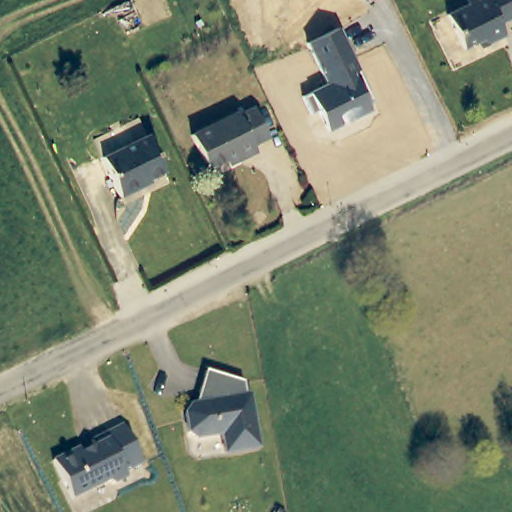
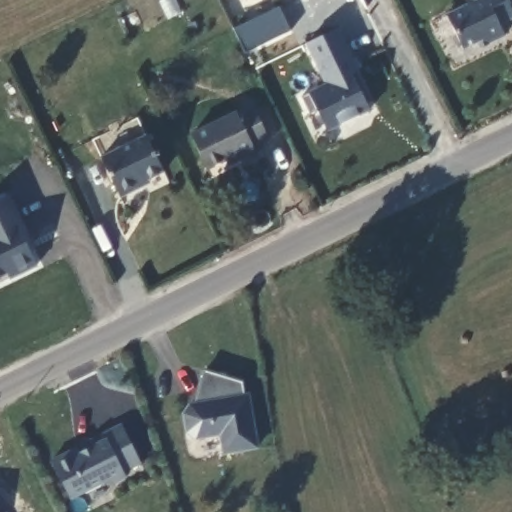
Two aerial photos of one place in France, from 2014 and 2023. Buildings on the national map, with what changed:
unchanged [(465,50),(450,19),(476,8),(473,1),(476,0),(512,0),(512,23),(505,26),(509,39),(491,46),(482,50),(480,44),(465,50)]
unchanged [(322,130),(303,94),(325,84),(306,45),(337,28),(373,105),(322,130)]
unchanged [(236,112),(237,115),(254,109),(266,135),(251,142),(255,151),(237,161),(233,155),(208,169),(191,134),(236,112)]
unchanged [(165,171),(137,183),(140,187),(120,195),(100,157),(147,135),(165,171)]
new [(32,250),(39,266),(14,278),(11,274),(0,279),(0,200),(11,195),(35,247),(32,250)]
unchanged [(256,445),(222,452),(219,432),(187,438),(181,405),(199,402),(200,395),(195,393),(196,391),(202,370),(240,380),(242,394),(246,393),(256,445)]
unchanged [(141,460),(124,469),(127,475),(114,481),(106,479),(71,497),(52,460),(78,446),(80,450),(94,444),(91,438),(122,422),(141,460)]

